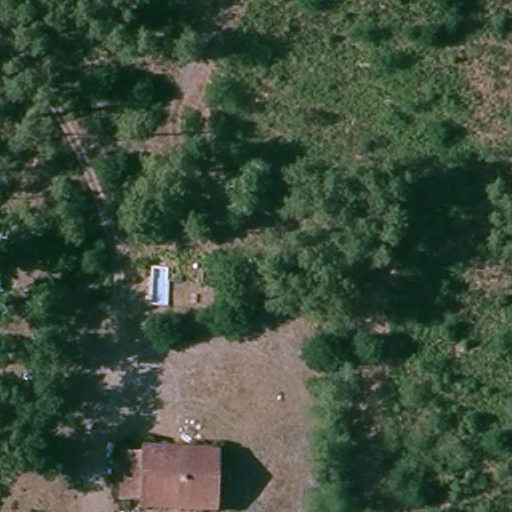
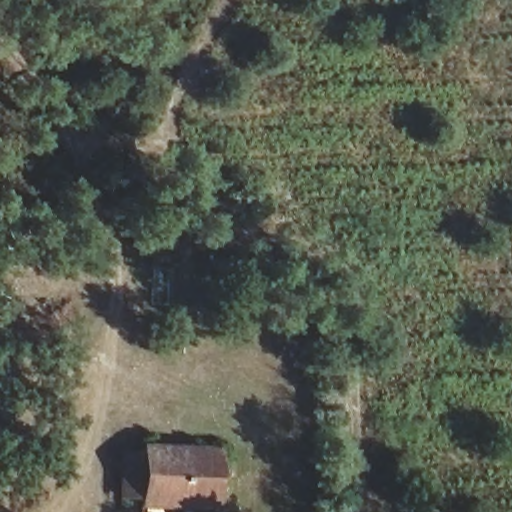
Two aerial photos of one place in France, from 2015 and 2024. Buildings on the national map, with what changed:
unchanged [(124,459),(147,459),(147,450),(218,453),(218,512),(183,512),(148,512),(146,501),(124,501),(124,459)]

